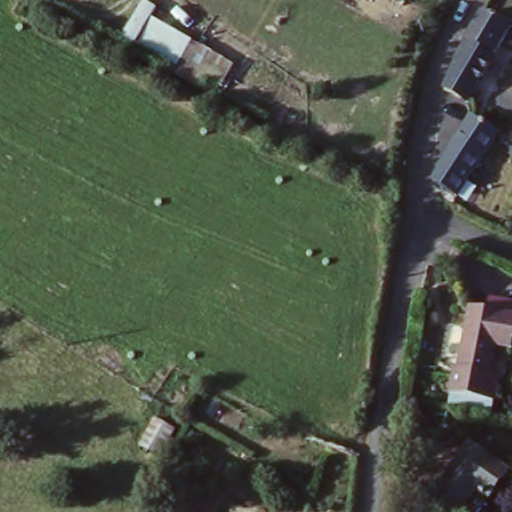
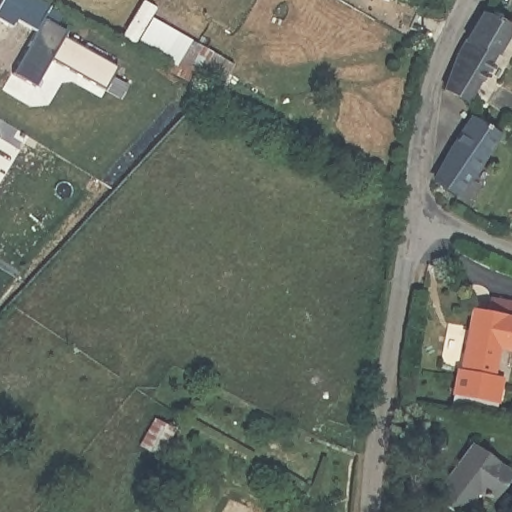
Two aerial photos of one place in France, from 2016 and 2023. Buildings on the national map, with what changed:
new [(45,0),(51,3),(43,20),(37,29),(17,18),(13,25),(0,18),(0,3),(2,0),(45,0)]
unchanged [(466,98),(442,88),(463,37),(481,6),(510,21),(466,98)]
unchanged [(148,16),(224,57),(212,90),(169,72),(173,65),(134,42),(148,16)]
new [(42,19),(64,32),(63,36),(113,66),(102,88),(50,58),(35,84),(12,73),(42,19)]
unchanged [(475,164),(456,202),(434,183),(448,149),(469,113),(496,130),(475,164)]
unchanged [(373,217),(379,219),(377,226),(372,225),(373,217)]
unchanged [(480,315),(483,302),(512,309),(512,344),(510,353),(492,349),(485,384),(496,386),(490,407),(452,399),(469,313),(480,315)]
unchanged [(512,469),(494,492),(481,482),(465,501),(440,481),(475,438),(512,467),(512,469)]

